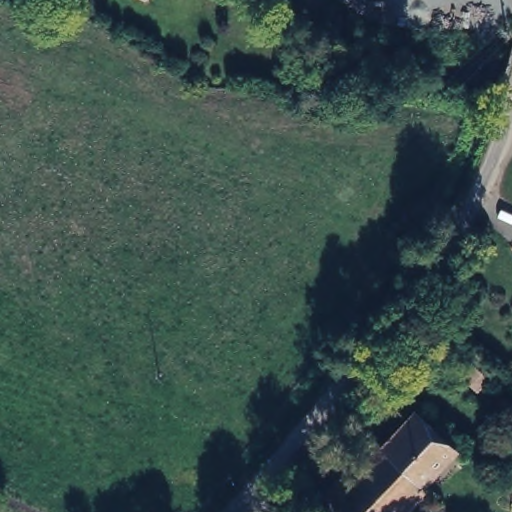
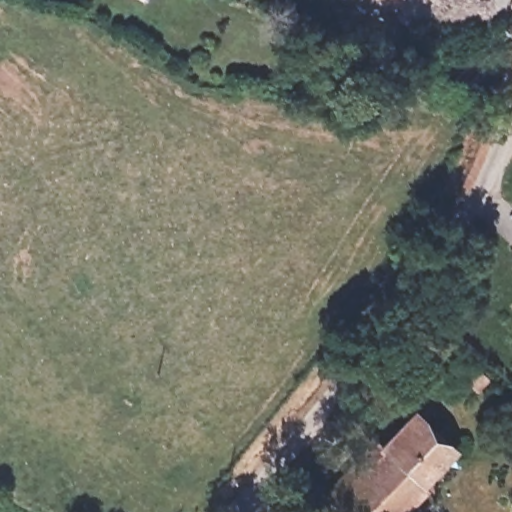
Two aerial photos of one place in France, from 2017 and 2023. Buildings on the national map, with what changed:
unchanged [(330,491),(414,400),(454,437),(392,502),(383,512),(328,512),(319,502),(330,491)]

